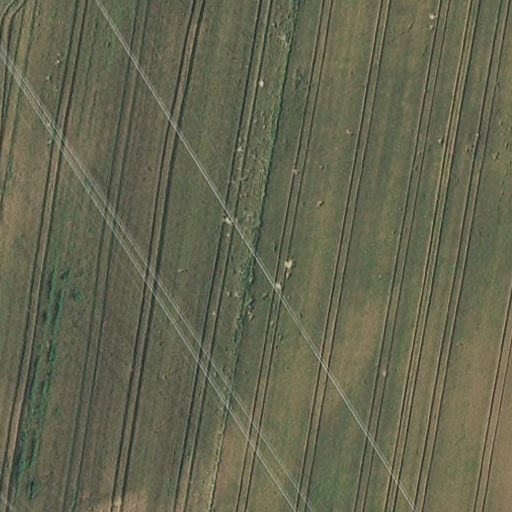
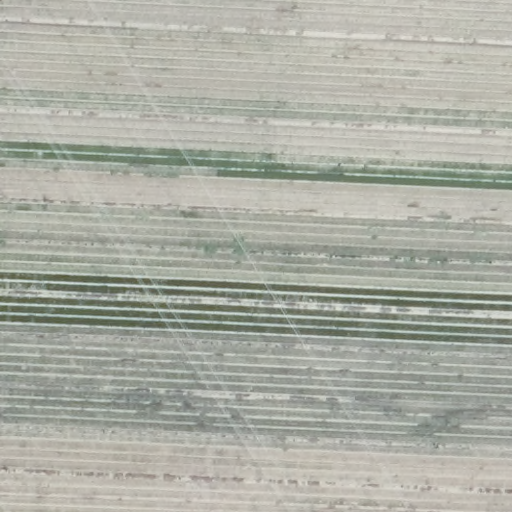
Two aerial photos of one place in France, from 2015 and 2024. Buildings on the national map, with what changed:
[]

